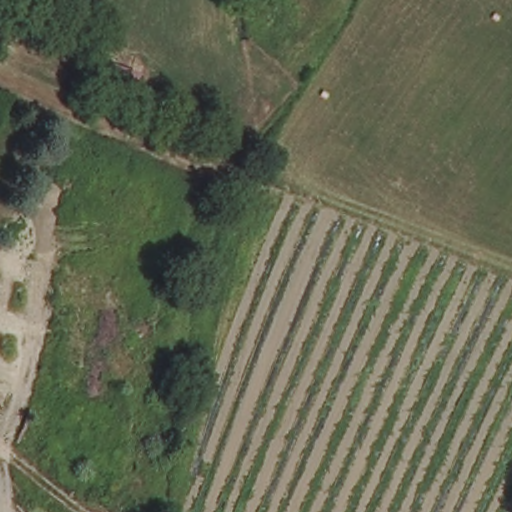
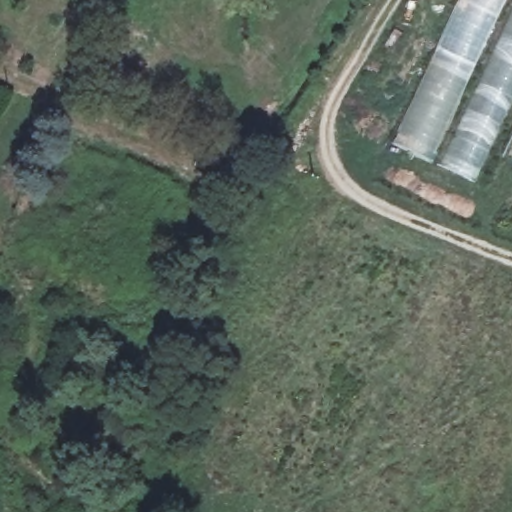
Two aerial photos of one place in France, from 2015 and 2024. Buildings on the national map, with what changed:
new [(396,142),(462,0),(512,0),(512,102),(475,179),(396,142)]
new [(512,164),(500,157),(512,133),(512,164)]

